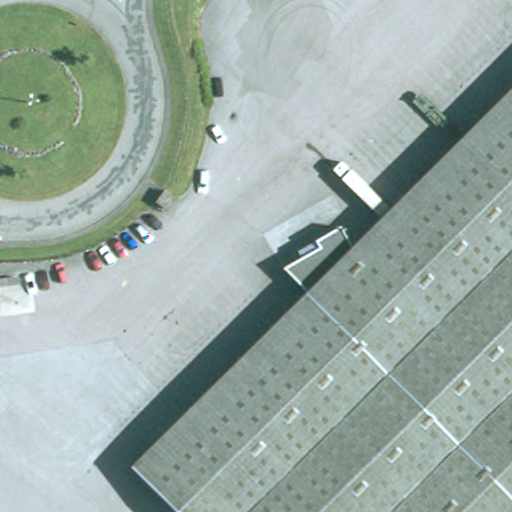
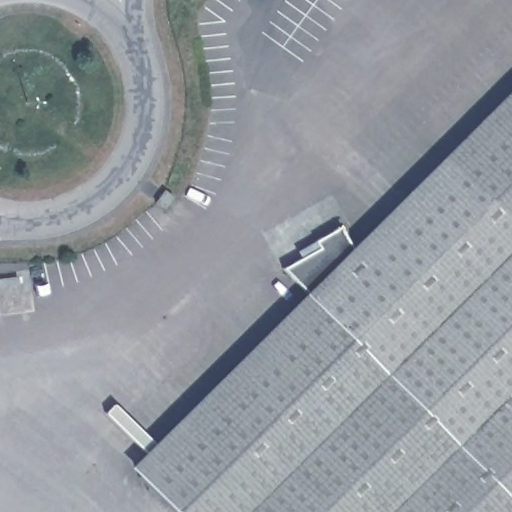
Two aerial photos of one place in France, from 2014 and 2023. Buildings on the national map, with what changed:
unchanged [(137,474),(313,299),(281,267),(302,255),(297,249),(310,240),(337,224),(357,254),(512,103),(512,512),(175,512),(137,474)]
unchanged [(175,197),(165,209),(157,202),(165,190),(175,197)]
unchanged [(16,277),(17,285),(0,287),(0,279),(16,277)]

